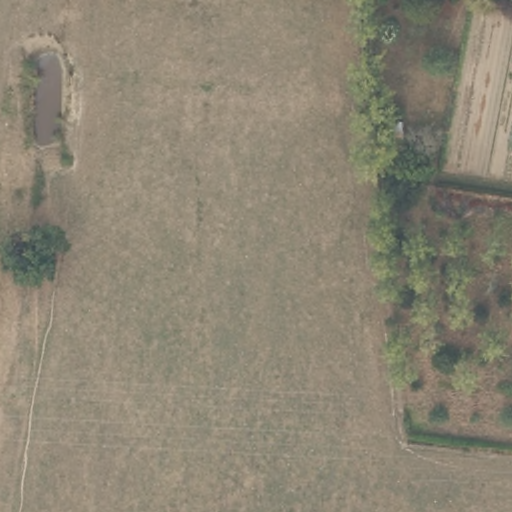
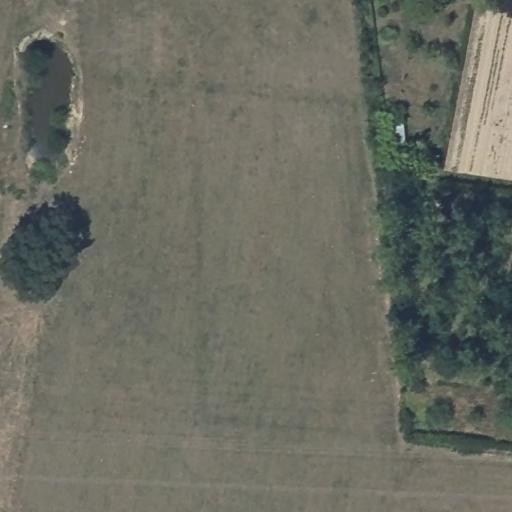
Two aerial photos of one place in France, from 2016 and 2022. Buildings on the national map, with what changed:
[]

